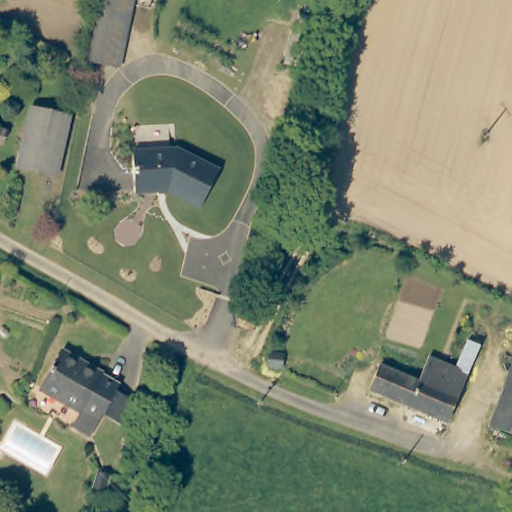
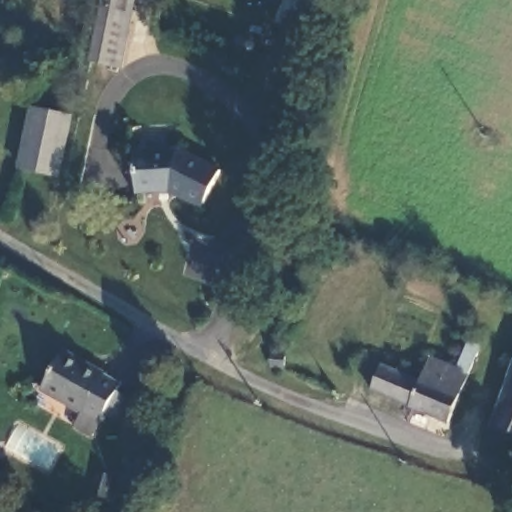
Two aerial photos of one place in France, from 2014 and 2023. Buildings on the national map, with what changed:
unchanged [(151,7),(134,4),(120,67),(88,61),(100,0),(153,0),(151,7)]
unchanged [(66,120),(51,182),(14,172),(29,111),(66,120)]
unchanged [(179,152),(219,174),(199,211),(169,195),(134,197),(132,154),(171,152),(179,152)]
unchanged [(91,437),(74,427),(80,415),(49,397),(36,390),(60,348),(64,351),(102,372),(106,376),(121,384),(91,437)]
unchanged [(470,365),(447,425),(353,385),(365,358),(423,383),(433,361),(452,368),(456,360),(470,365)]
unchanged [(490,425),(512,366),(512,432),(490,425)]

